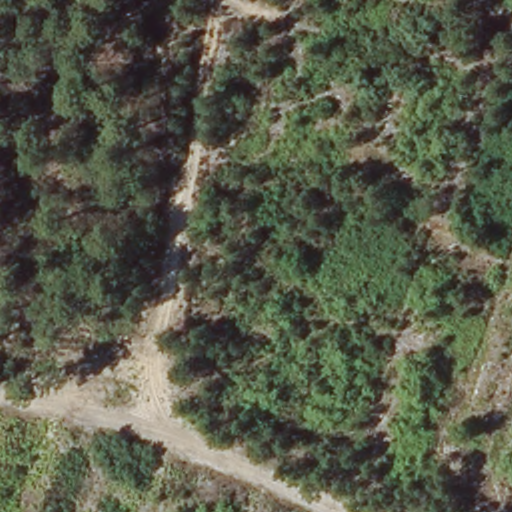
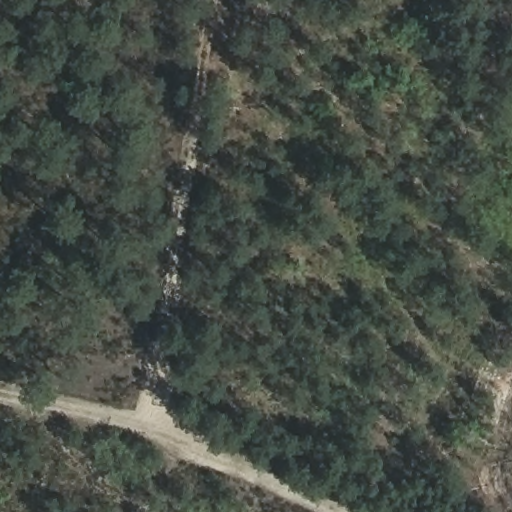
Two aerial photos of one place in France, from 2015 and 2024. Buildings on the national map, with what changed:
[]

